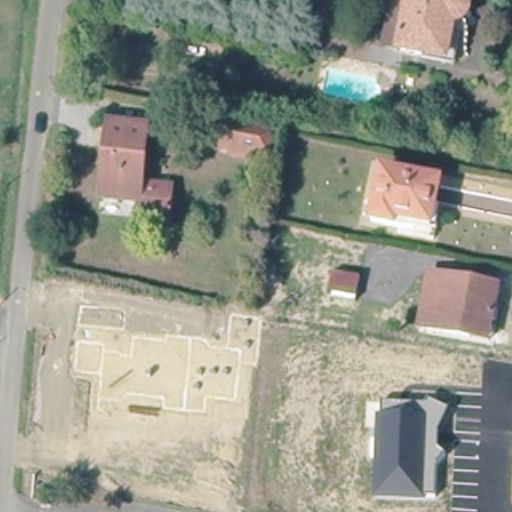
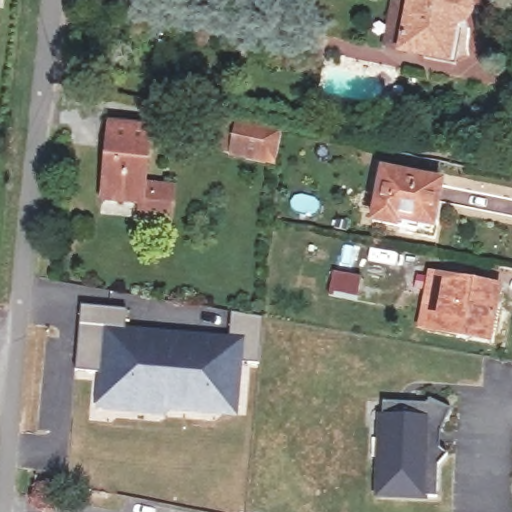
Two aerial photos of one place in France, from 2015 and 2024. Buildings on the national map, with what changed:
unchanged [(473,2),(471,10),(462,20),(456,50),(404,40),(386,37),(393,0),(472,0),(473,2)]
unchanged [(142,178),(174,180),(173,211),(140,210),(141,192),(101,187),(109,115),(150,117),(142,178)]
unchanged [(223,115),(289,126),(287,162),(216,152),(223,115)]
unchanged [(430,225),(374,215),(380,171),(438,179),(430,225)]
unchanged [(370,297),(338,294),(343,266),(372,268),(370,297)]
unchanged [(483,335),(416,325),(425,271),(492,283),(483,335)]
new [(89,294),(135,299),(132,319),(131,325),(140,326),(138,345),(129,345),(129,341),(111,339),(111,332),(85,329),(86,314),(89,294)]
new [(209,405),(168,400),(167,400),(167,405),(107,397),(106,399),(103,398),(104,388),(107,362),(81,360),(85,329),(111,332),(111,339),(129,341),(129,345),(138,345),(140,326),(174,330),(175,325),(212,330),(236,332),(239,306),(269,312),(264,358),(245,356),(240,393),(239,408),(209,405)]
unchanged [(425,500),(374,498),(377,415),(382,415),(382,401),(426,403),(429,398),(449,410),(438,432),(438,450),(446,455),(436,465),(436,497),(426,496),(425,500)]

